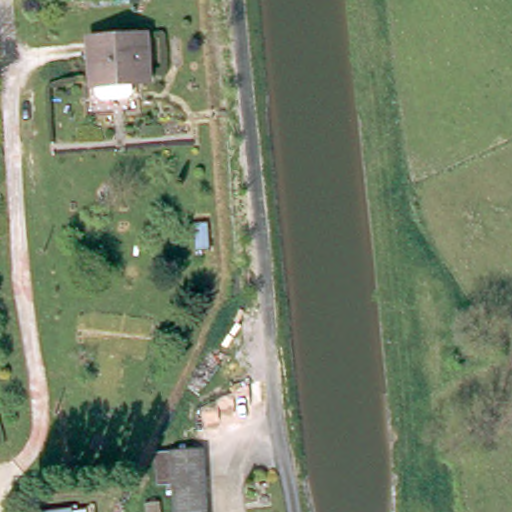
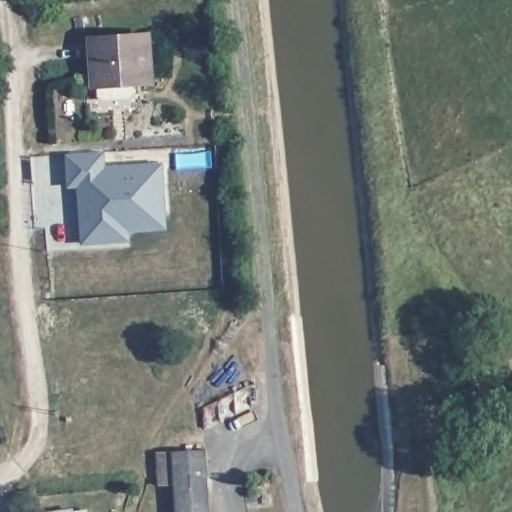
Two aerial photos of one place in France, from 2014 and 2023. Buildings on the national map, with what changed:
unchanged [(142,31),(145,74),(131,75),(132,86),(127,91),(102,93),(97,88),(95,77),(92,78),(89,34),(142,31)]
new [(129,231),(130,243),(84,245),(80,187),(70,187),(68,153),(105,151),(106,168),(162,165),(167,230),(129,231)]
unchanged [(210,512),(177,512),(174,450),(206,448),(210,512)]
unchanged [(158,451),(174,450),(177,512),(161,512),(160,477),(158,451)]
unchanged [(75,512),(61,512),(75,510),(75,512)]

